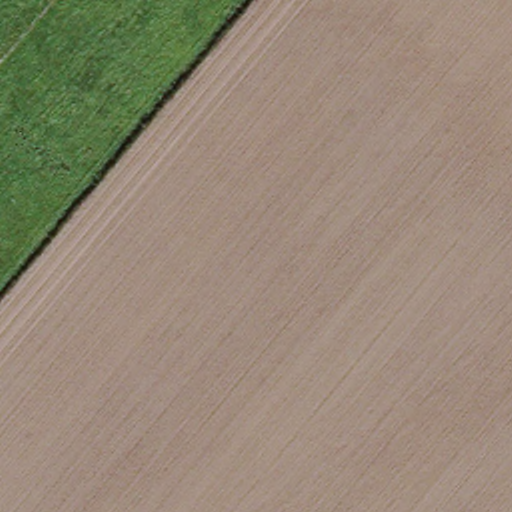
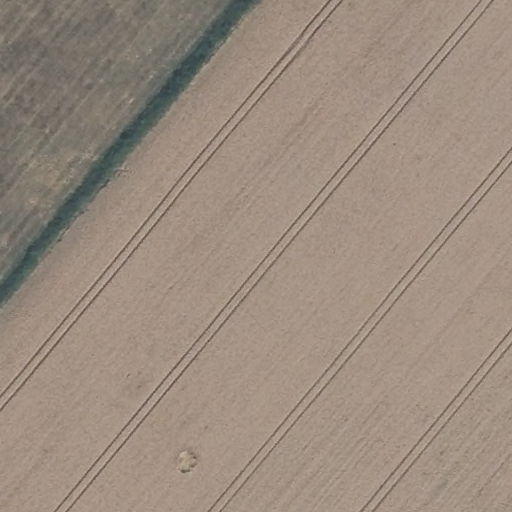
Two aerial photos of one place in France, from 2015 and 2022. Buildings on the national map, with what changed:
[]

